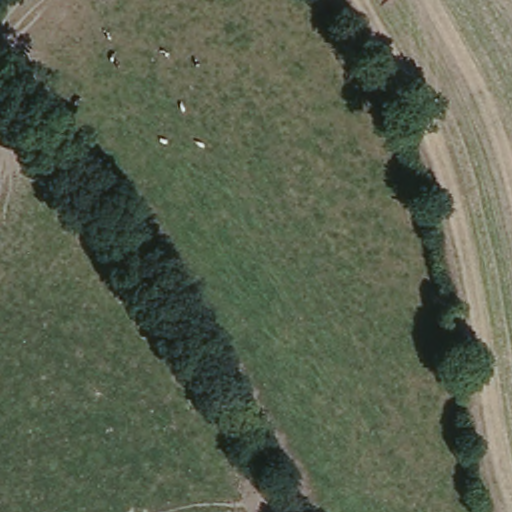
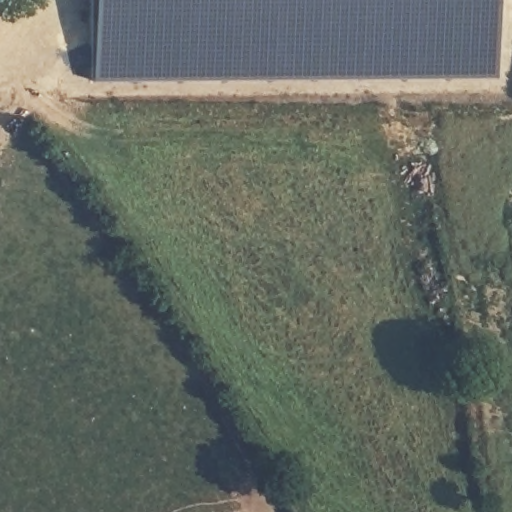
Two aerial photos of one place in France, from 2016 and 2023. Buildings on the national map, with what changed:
new [(495,77),(93,78),(93,0),(494,0),(495,77)]

